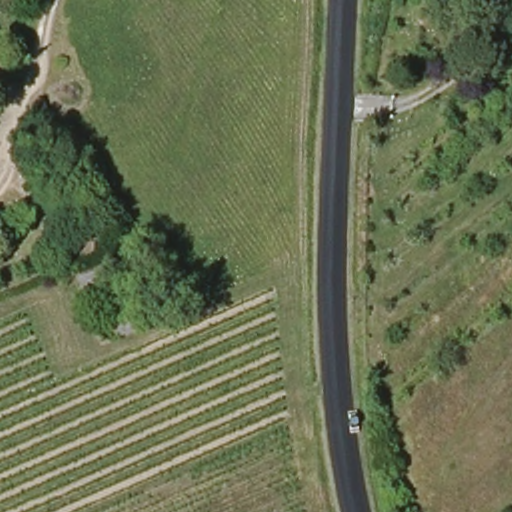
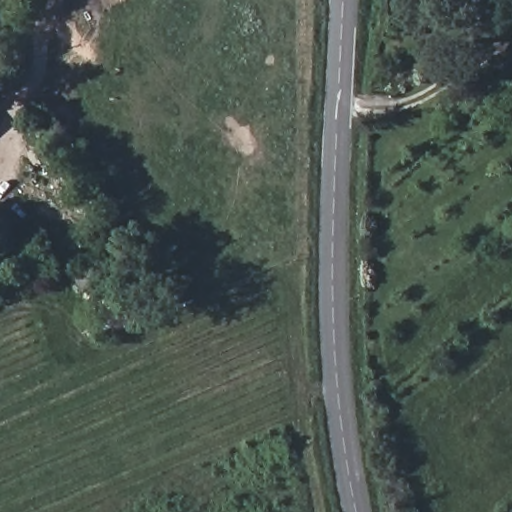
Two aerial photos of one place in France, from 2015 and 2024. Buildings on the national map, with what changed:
unchanged [(136,285),(80,307),(76,290),(131,267),(136,285)]

